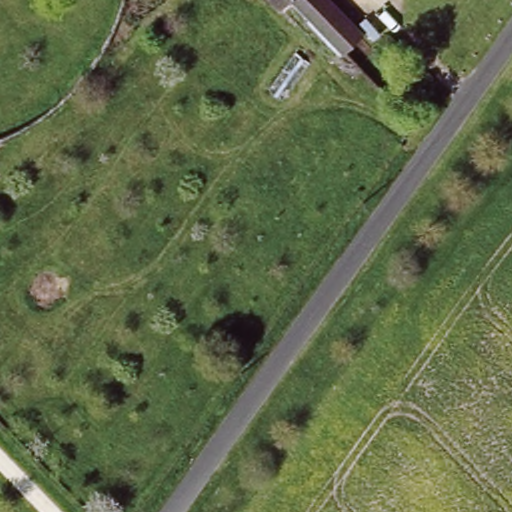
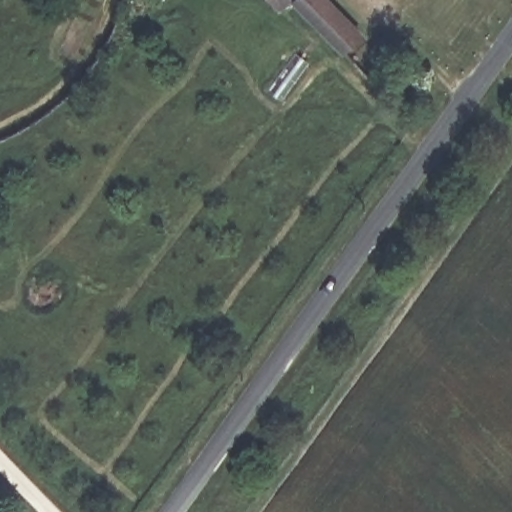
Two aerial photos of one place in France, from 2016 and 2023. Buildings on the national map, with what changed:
unchanged [(275,0),(335,0),(365,32),(334,62),(322,49),(275,0)]
unchanged [(292,51),(307,61),(280,101),(265,91),(267,88),(292,51)]

